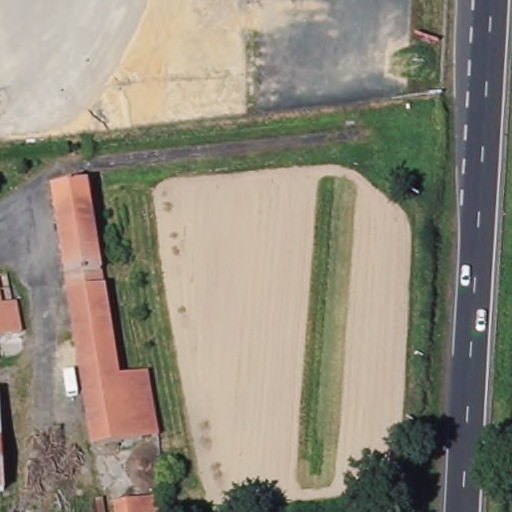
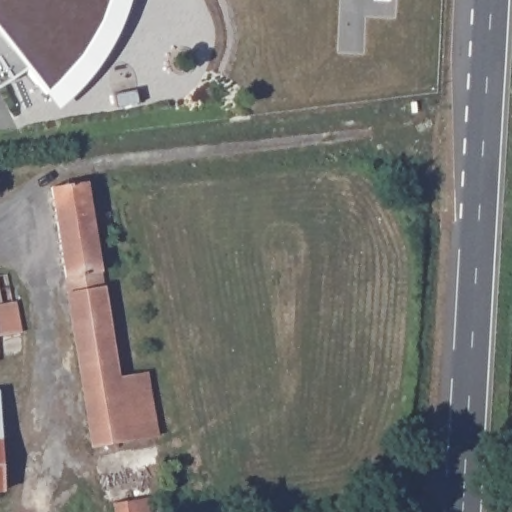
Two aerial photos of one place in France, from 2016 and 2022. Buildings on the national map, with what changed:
new [(131,7),(119,37),(103,65),(81,91),(60,111),(28,67),(3,84),(0,85),(0,0),(133,0),(131,7)]
unchanged [(44,184),(89,179),(94,217),(51,222),(44,184)]
unchanged [(94,217),(118,361),(147,358),(159,434),(91,442),(60,272),(51,222),(94,217)]
unchanged [(8,347),(0,348),(0,310),(3,310),(8,347)]
unchanged [(5,445),(1,496),(0,496),(0,394),(10,395),(5,445)]
unchanged [(153,512),(111,512),(110,505),(150,497),(153,512)]

